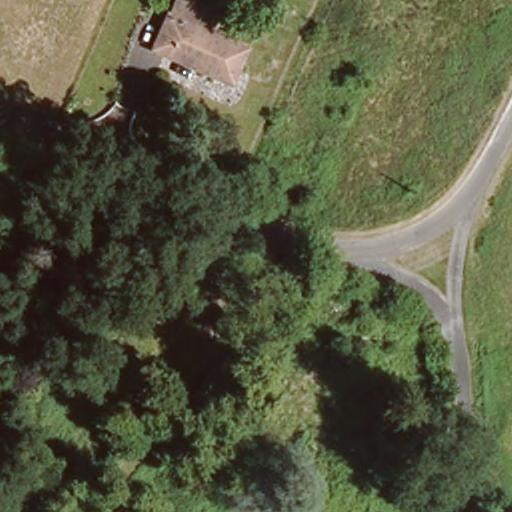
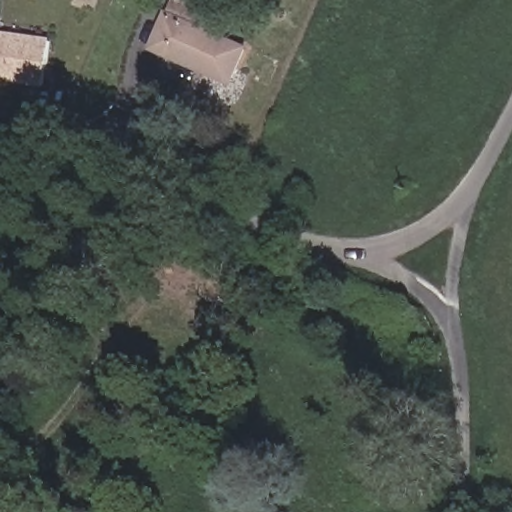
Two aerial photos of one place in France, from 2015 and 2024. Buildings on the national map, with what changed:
unchanged [(251,42),(236,80),(156,47),(171,11),(251,42)]
new [(0,81),(0,32),(50,38),(45,87),(0,81)]

